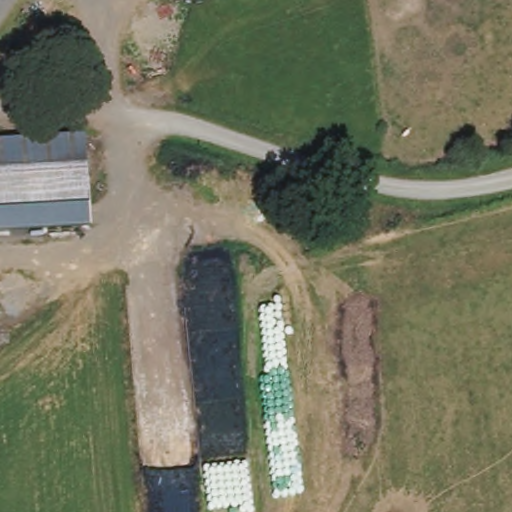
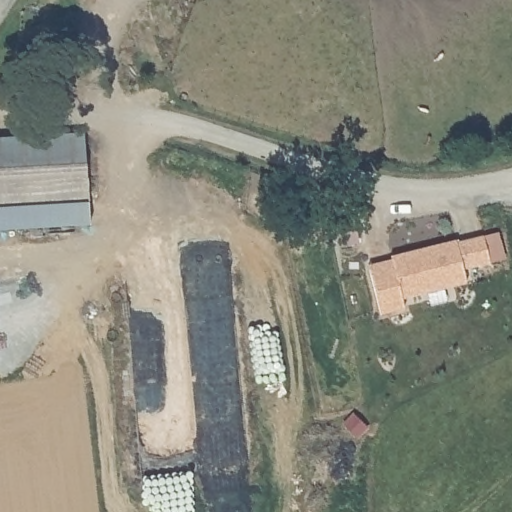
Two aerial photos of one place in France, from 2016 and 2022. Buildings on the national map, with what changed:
unchanged [(82,135),(86,205),(0,209),(0,139),(82,135)]
unchanged [(86,205),(86,225),(0,229),(0,209),(86,205)]
new [(393,258),(391,255),(459,237),(460,242),(486,235),(492,261),(463,268),(466,283),(403,298),(405,310),(382,315),(371,265),(393,258)]

